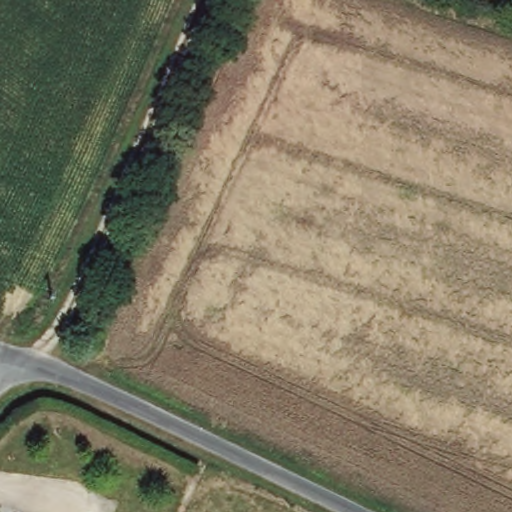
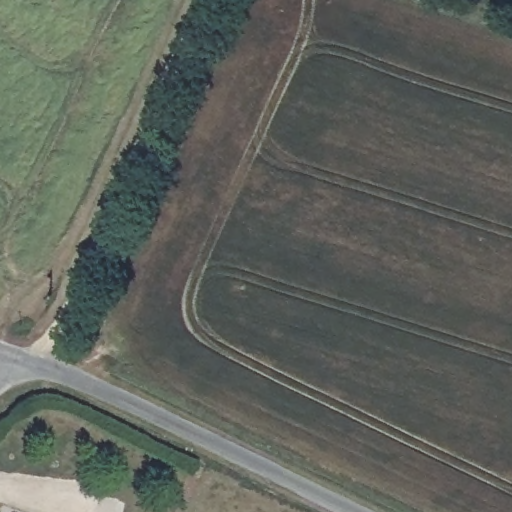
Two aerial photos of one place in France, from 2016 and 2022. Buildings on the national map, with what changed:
[]

